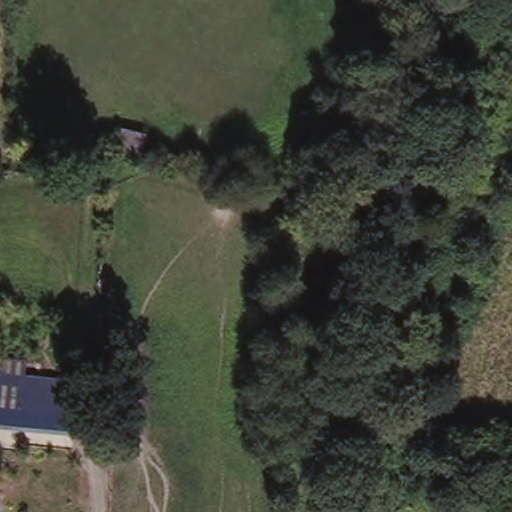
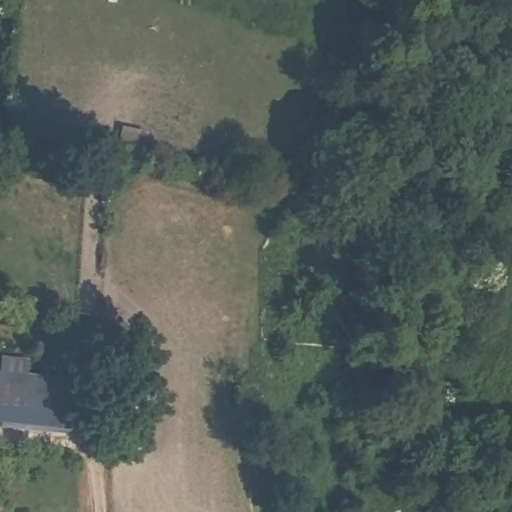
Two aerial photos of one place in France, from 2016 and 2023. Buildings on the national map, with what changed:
unchanged [(2,385),(85,390),(82,408),(0,400),(2,385)]
unchanged [(82,408),(80,425),(0,418),(0,400),(82,408)]

